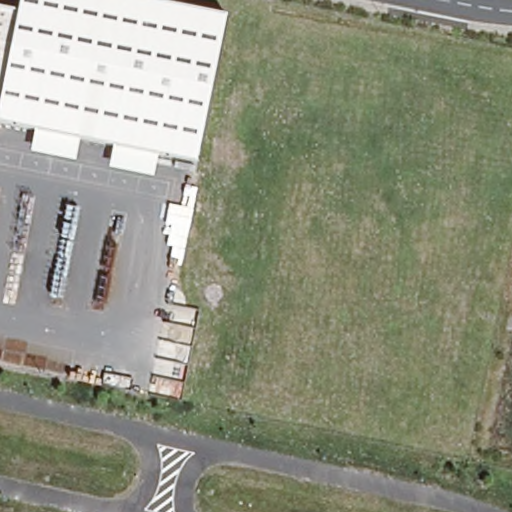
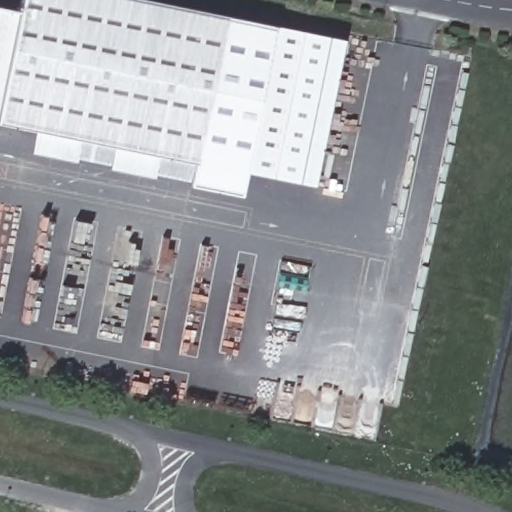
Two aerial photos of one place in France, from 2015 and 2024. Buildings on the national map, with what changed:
unchanged [(13,0),(153,0),(229,15),(197,162),(0,124),(0,8),(11,11),(13,0)]
new [(275,25),(246,171),(241,195),(192,186),(197,162),(229,15),(275,25)]
new [(314,186),(246,171),(275,25),(344,39),(314,186)]

